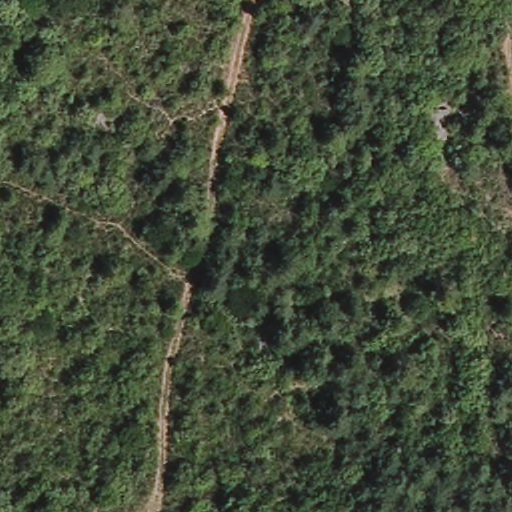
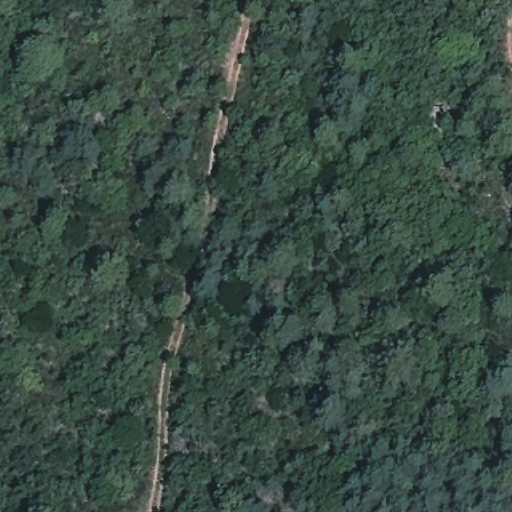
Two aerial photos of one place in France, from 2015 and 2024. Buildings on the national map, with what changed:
unchanged [(445,105),(442,134),(424,135),(425,105),(445,105)]

